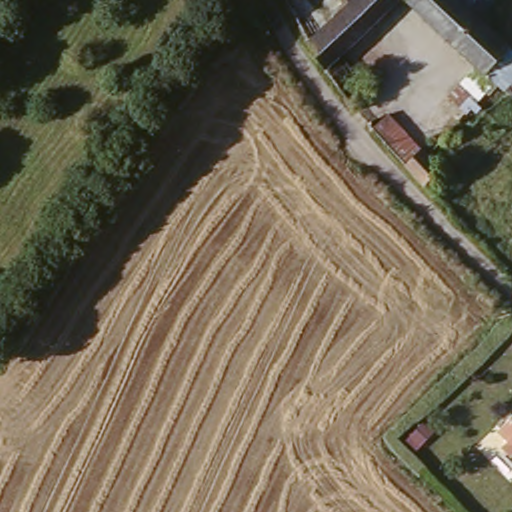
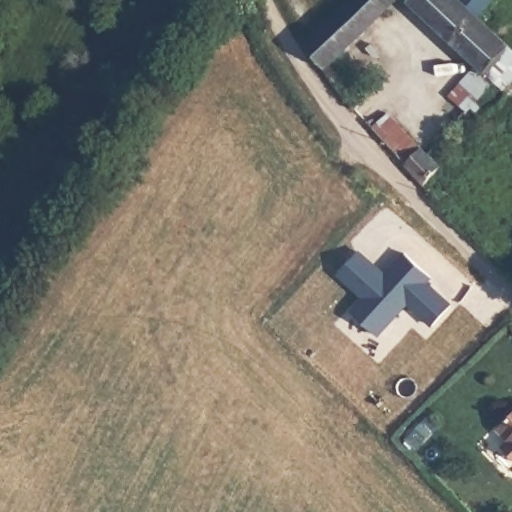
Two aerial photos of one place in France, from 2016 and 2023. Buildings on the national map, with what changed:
unchanged [(324,67),(302,43),(345,0),(395,0),(324,67)]
unchanged [(478,15),(512,47),(512,75),(504,84),(497,78),(468,108),(451,93),(476,62),(410,0),(490,0),(478,15)]
unchanged [(445,108),(458,119),(435,145),(422,132),(445,108)]
unchanged [(386,113),(419,145),(422,142),(432,154),(441,164),(422,183),(403,161),(401,155),(370,125),(386,113)]
new [(408,302),(378,334),(353,312),(367,297),(341,274),(361,252),(385,277),(406,254),(430,276),(450,307),(434,325),(408,302)]
unchanged [(508,439),(500,429),(512,417),(512,455),(506,448),(508,439)]

